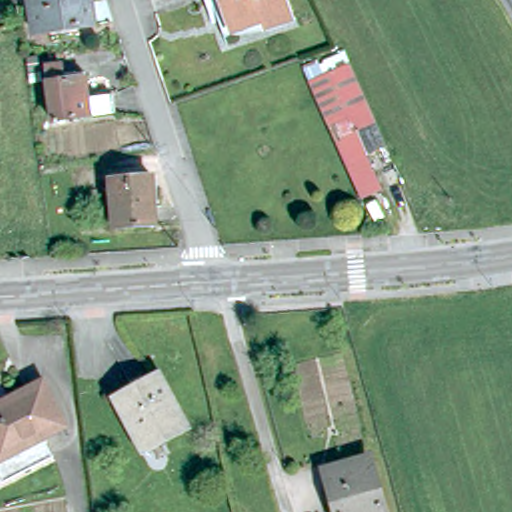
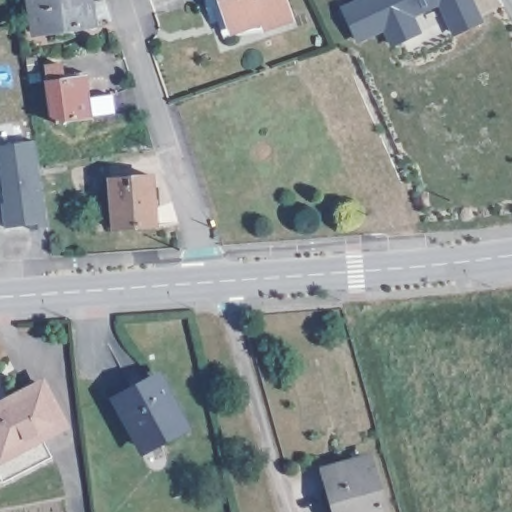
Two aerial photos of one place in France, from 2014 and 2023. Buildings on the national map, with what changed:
unchanged [(37,33),(32,0),(89,0),(92,25),(37,33)]
unchanged [(295,13),(270,21),(268,15),(238,25),(226,29),(216,0),(290,0),(295,13)]
new [(365,0),(473,0),(483,23),(457,35),(442,3),(413,16),(420,33),(394,44),(387,27),(360,39),(346,9),(365,0)]
unchanged [(62,66),(64,76),(74,75),(74,72),(85,71),(89,100),(112,96),(115,114),(54,123),(46,69),(62,66)]
unchanged [(312,89),(350,71),(375,126),(355,135),(381,192),(362,201),(312,89)]
new [(47,228),(32,230),(32,225),(7,228),(3,206),(6,206),(0,163),(0,148),(35,141),(47,228)]
unchanged [(115,229),(110,180),(152,177),(157,225),(115,229)]
unchanged [(44,440),(54,463),(0,488),(0,403),(45,377),(74,428),(44,440)]
unchanged [(145,448),(119,401),(159,380),(184,427),(145,448)]
unchanged [(370,459),(385,512),(338,512),(327,471),(370,459)]

